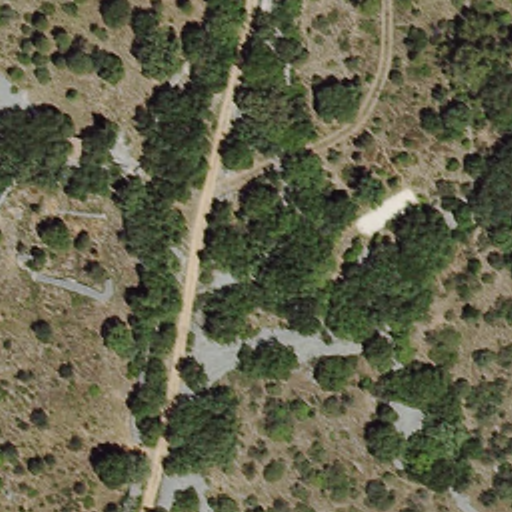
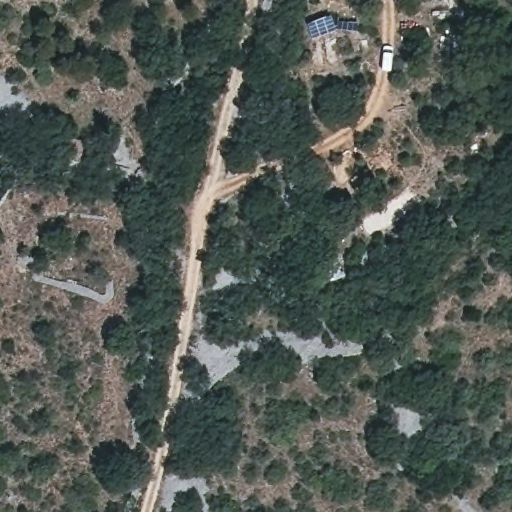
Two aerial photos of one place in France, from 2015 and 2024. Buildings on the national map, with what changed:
unchanged [(83,141),(79,161),(63,161),(67,139),(83,141)]

